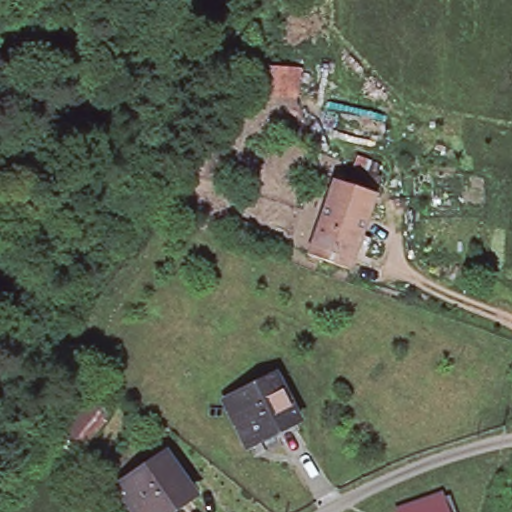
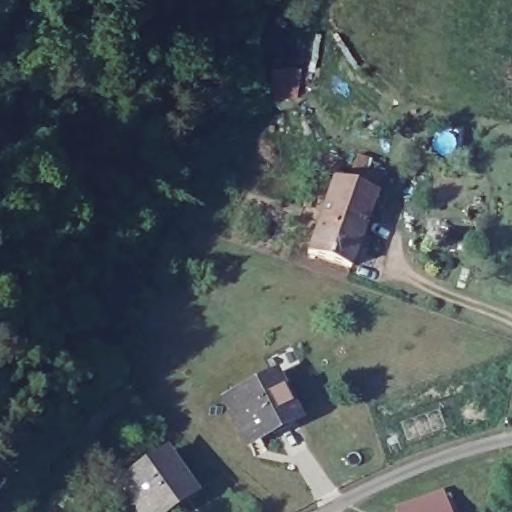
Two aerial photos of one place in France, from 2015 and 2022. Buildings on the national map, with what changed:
unchanged [(256,96),(260,63),(302,69),(297,99),(256,96)]
unchanged [(331,174),(375,190),(362,231),(317,217),(331,174)]
unchanged [(317,217),(362,231),(348,271),(304,256),(317,217)]
unchanged [(264,377),(290,419),(258,439),(243,415),(232,422),(222,405),(264,377)]
unchanged [(83,455),(57,434),(88,396),(115,415),(83,455)]
unchanged [(117,491),(164,457),(191,496),(167,512),(134,512),(127,504),(117,491)]
unchanged [(435,491),(436,492),(446,512),(392,512),(428,495),(435,491)]

